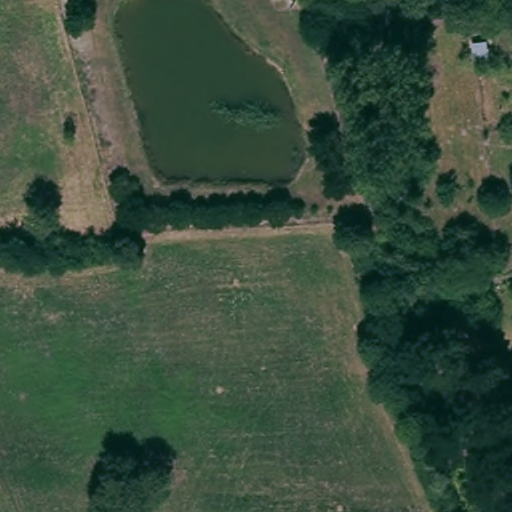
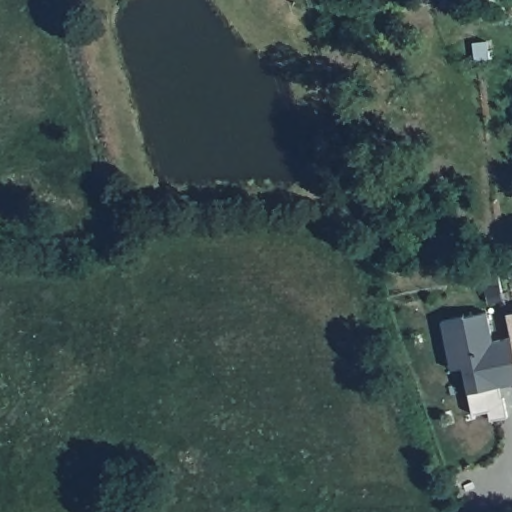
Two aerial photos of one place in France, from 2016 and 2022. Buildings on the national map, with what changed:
new [(507,416),(490,419),(488,410),(472,413),(463,366),(451,368),(442,320),(487,311),(492,341),(511,337),(512,344),(512,383),(502,385),(503,396),(507,416)]
new [(511,337),(507,312),(512,311),(512,345),(511,337)]

